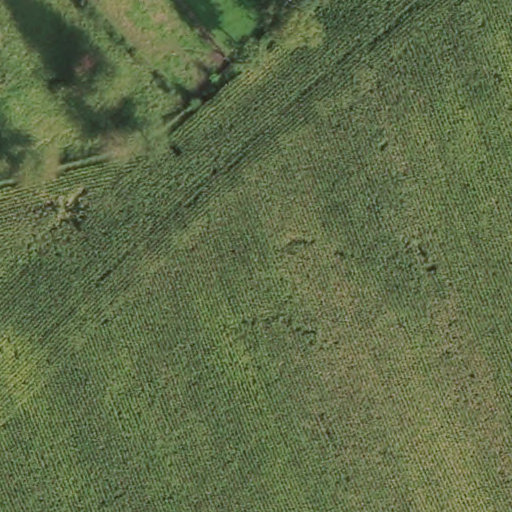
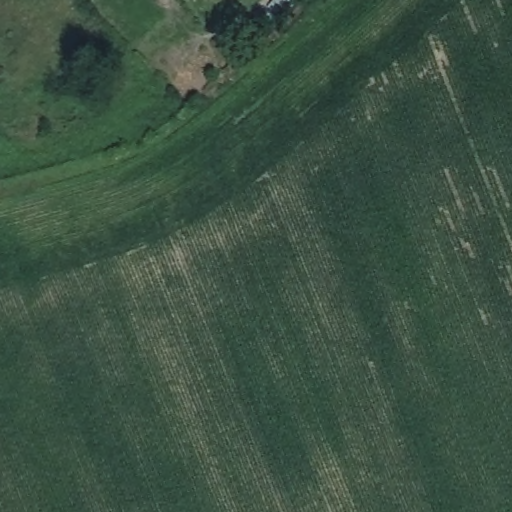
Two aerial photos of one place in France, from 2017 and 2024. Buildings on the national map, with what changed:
[]

